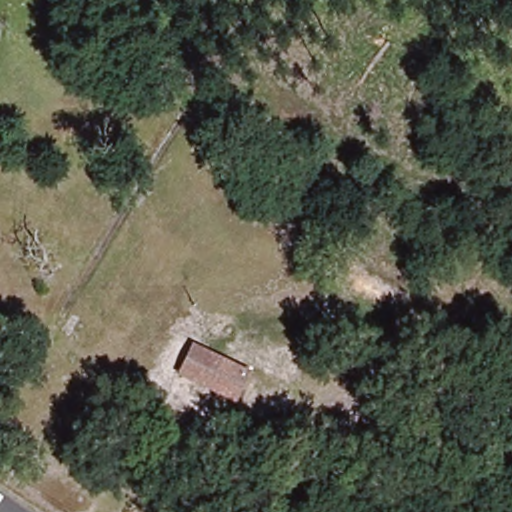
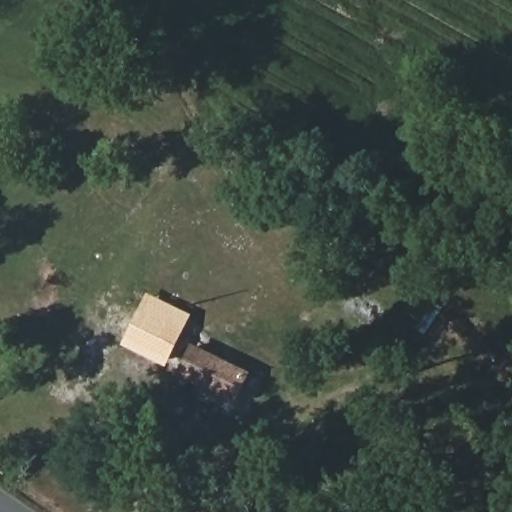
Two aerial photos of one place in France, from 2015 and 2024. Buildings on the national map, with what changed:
new [(122,345),(147,292),(191,314),(166,366),(122,345)]
unchanged [(249,375),(235,400),(180,371),(194,345),(249,375)]

